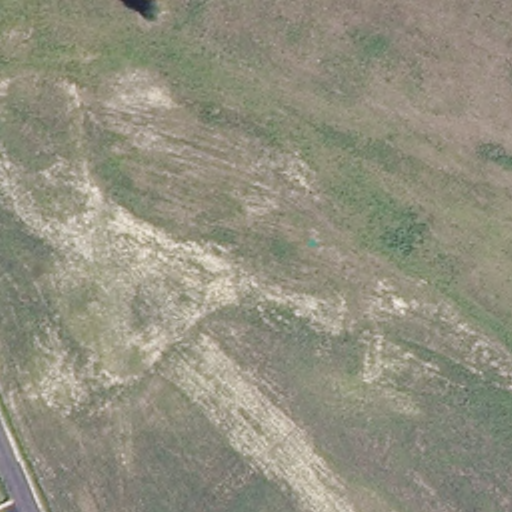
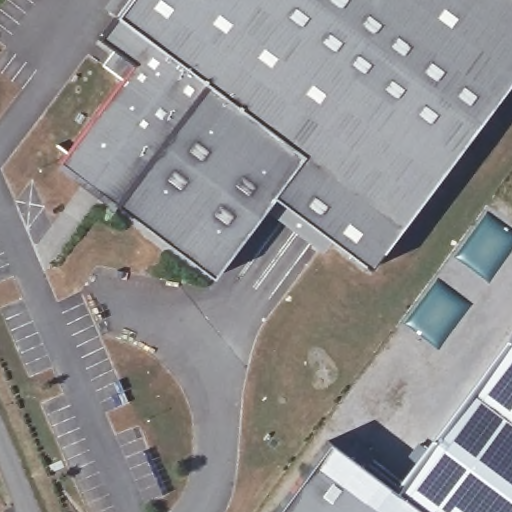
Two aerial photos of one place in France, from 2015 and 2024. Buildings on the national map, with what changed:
new [(512,76),(365,269),(271,196),(212,274),(115,205),(58,165),(122,80),(102,65),(115,49),(102,38),(115,17),(128,0),(512,0),(512,76)]
new [(512,337),(512,512),(421,512),(395,492),(512,337)]
unchanged [(274,512),(327,441),(421,512),(274,512)]

